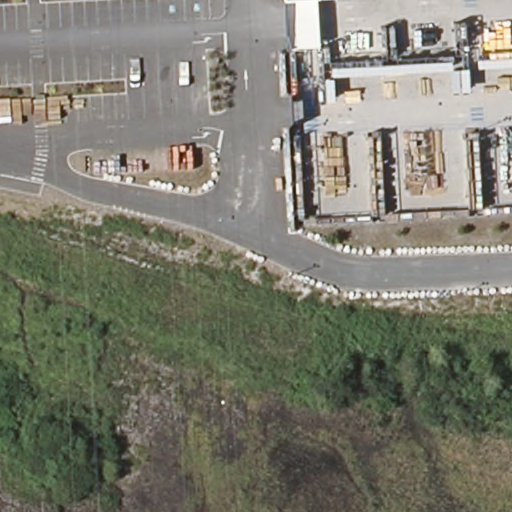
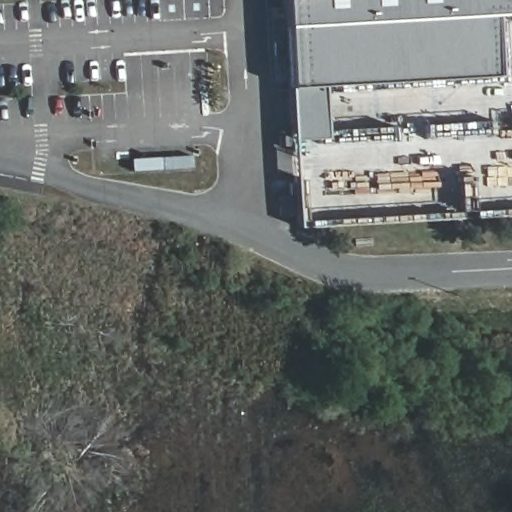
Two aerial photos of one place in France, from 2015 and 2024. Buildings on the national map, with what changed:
unchanged [(285,50),(283,0),(317,0),(320,47),(285,50)]
new [(317,0),(512,0),(512,13),(496,14),(499,76),(323,85),(327,137),(292,139),(285,50),(320,47),(317,0)]

